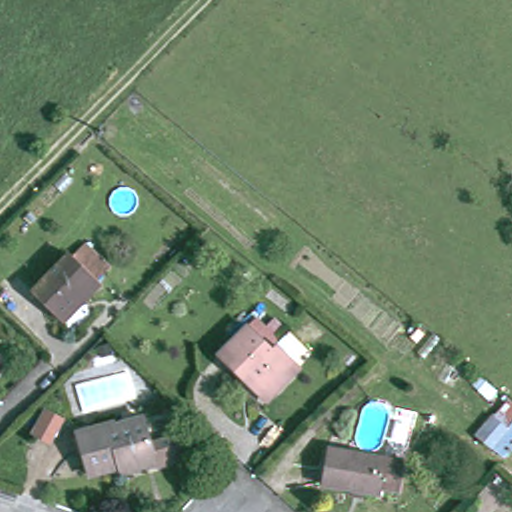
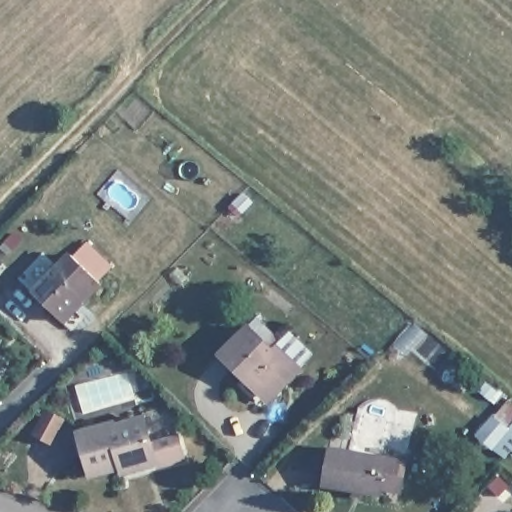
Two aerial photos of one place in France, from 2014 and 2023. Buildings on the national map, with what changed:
unchanged [(74,258),(76,261),(88,250),(107,270),(95,282),(97,284),(57,322),(34,296),(74,258)]
unchanged [(245,380),(221,357),(250,327),(273,349),(278,343),(302,369),(273,400),(248,376),(245,380)]
unchanged [(499,417),(512,404),(512,429),(495,448),(478,434),(496,415),(499,417)]
unchanged [(115,465),(85,471),(77,429),(111,422),(112,425),(144,419),(148,441),(177,436),(182,463),(155,469),(153,463),(126,469),(116,471),(115,465)]
unchanged [(376,497),(321,486),(329,447),(404,462),(399,493),(377,490),(376,497)]

